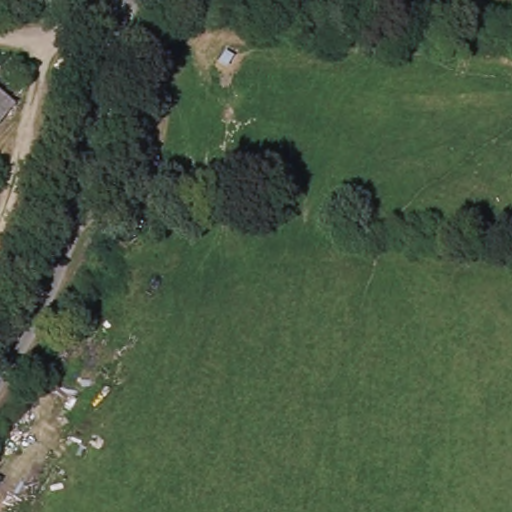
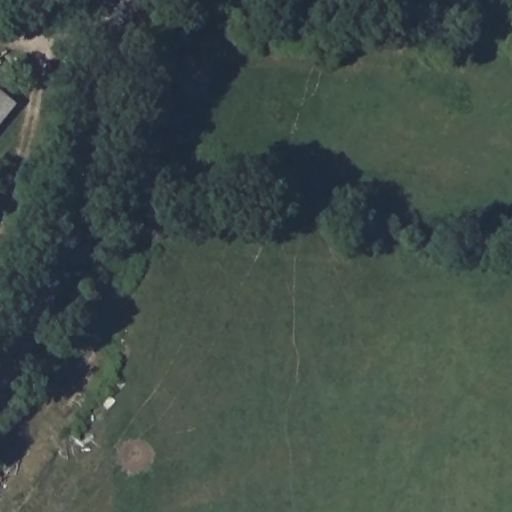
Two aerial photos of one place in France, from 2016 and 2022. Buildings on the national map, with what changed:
unchanged [(0,133),(0,87),(23,105),(0,133)]

